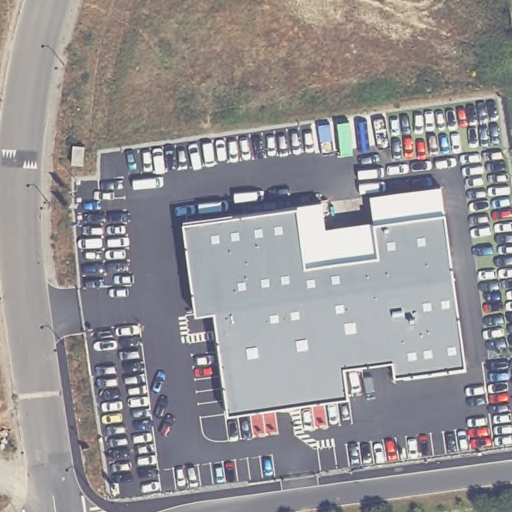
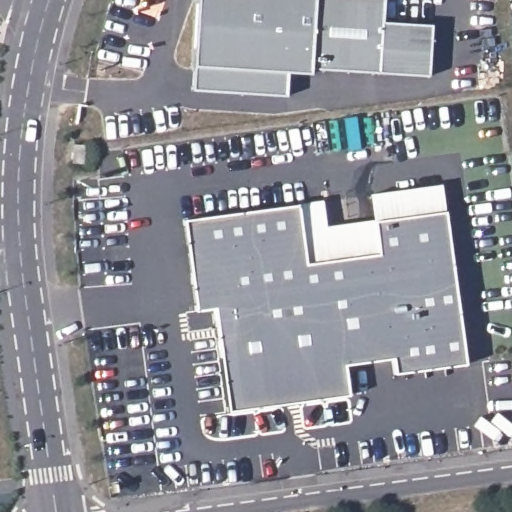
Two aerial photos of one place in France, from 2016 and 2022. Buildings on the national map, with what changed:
new [(383,0),(382,21),(431,24),(428,77),(309,69),(309,75),(287,73),(285,97),(190,91),(195,0),(383,0)]
unchanged [(395,375),(393,358),(343,365),(348,397),(229,413),(215,308),(197,311),(183,222),(321,201),(324,226),(373,219),(369,193),(441,184),(465,366),(395,375)]

